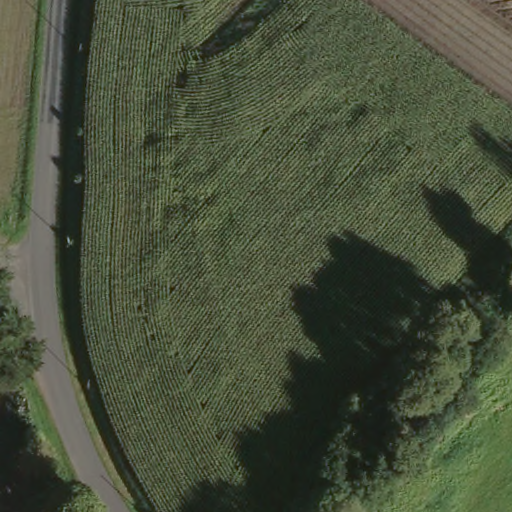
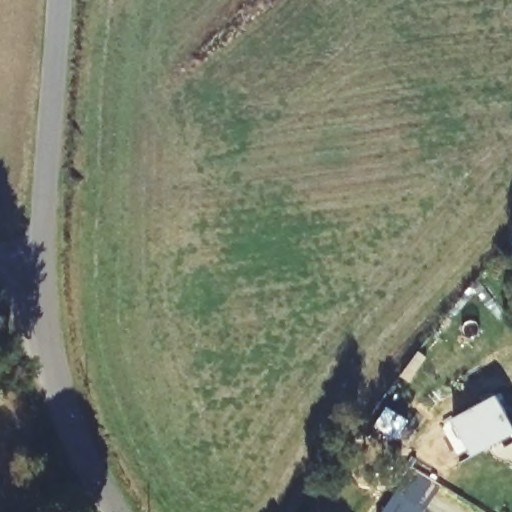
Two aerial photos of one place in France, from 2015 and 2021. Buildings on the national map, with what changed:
new [(454,420),(497,396),(506,412),(512,410),(512,438),(474,459),(454,420)]
new [(397,493),(424,510),(423,512),(384,512),(397,493)]

